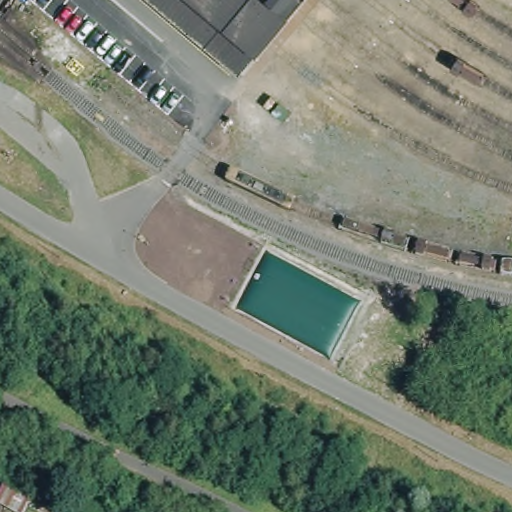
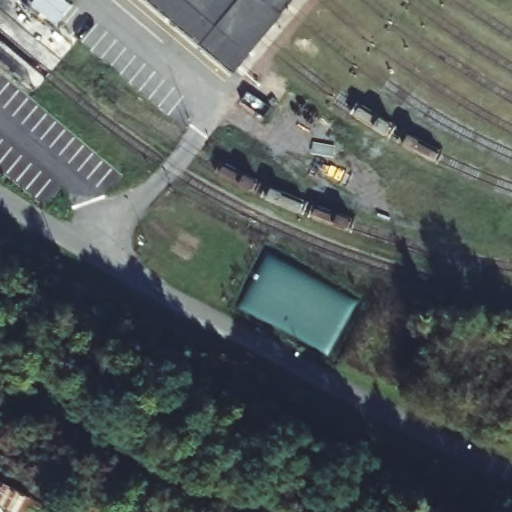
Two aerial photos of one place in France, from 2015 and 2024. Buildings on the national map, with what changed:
unchanged [(233,62),(159,0),(285,0),(233,62)]

